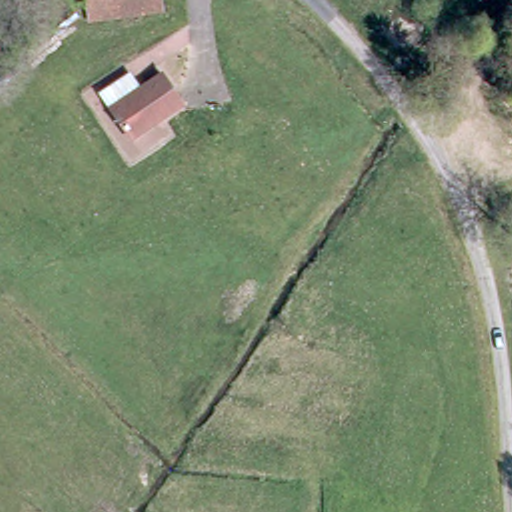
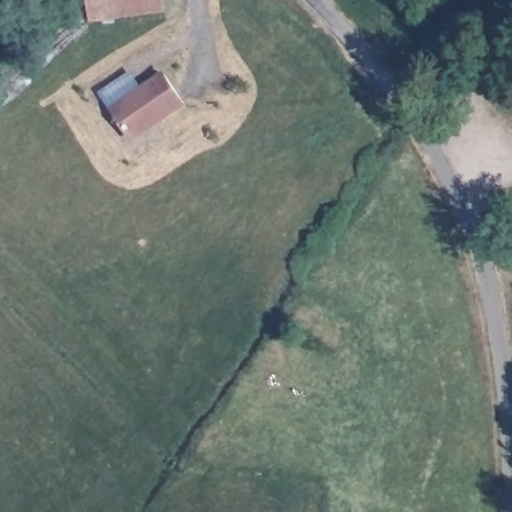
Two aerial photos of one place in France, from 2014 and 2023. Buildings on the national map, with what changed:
unchanged [(86,4),(86,0),(151,0),(150,10),(86,4)]
unchanged [(115,99),(112,91),(137,83),(139,89),(180,76),(194,113),(129,138),(115,99)]

